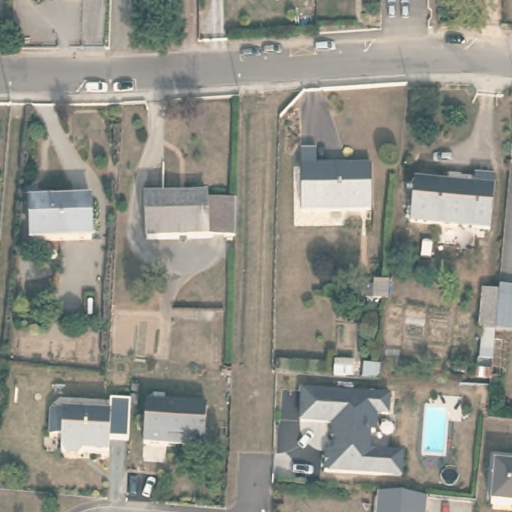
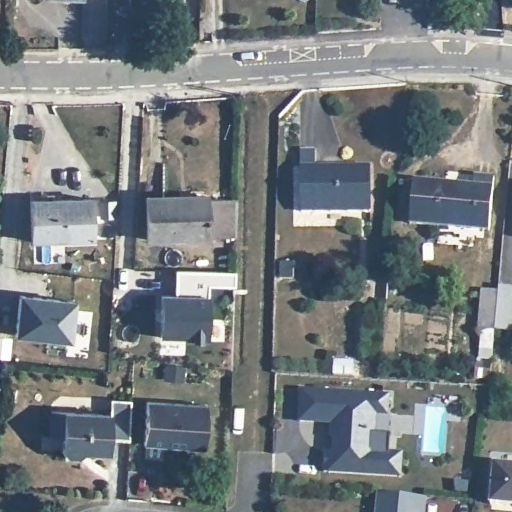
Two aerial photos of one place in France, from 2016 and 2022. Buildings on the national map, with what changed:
unchanged [(301,213),(300,150),(315,150),(315,168),(369,167),(368,211),(301,213)]
unchanged [(409,224),(413,181),(472,186),(473,176),(494,178),(489,231),(409,224)]
unchanged [(30,242),(29,201),(90,200),(92,241),(30,242)]
unchanged [(140,203),(172,202),(200,201),(200,205),(231,205),(230,243),(141,246),(140,203)]
new [(235,287),(207,286),(209,296),(208,340),(158,337),(160,293),(175,294),(175,270),(236,271),(235,287)]
unchanged [(372,301),(372,283),(388,284),(387,301),(372,301)]
unchanged [(482,291),(497,292),(497,298),(512,300),(512,347),(492,346),(493,334),(479,332),(482,291)]
new [(70,342),(14,336),(18,296),(75,301),(70,342)]
unchanged [(333,376),(333,367),(353,368),(352,376),(333,376)]
unchanged [(360,380),(361,370),(380,371),(380,381),(360,380)]
unchanged [(391,395),(390,413),(377,413),(377,431),(371,431),(370,450),(403,451),(402,474),(326,470),(327,450),(342,450),(342,437),(332,437),(333,422),(302,420),(303,390),(391,395)]
unchanged [(205,398),(202,458),(142,455),(145,395),(205,398)]
unchanged [(110,441),(109,454),(82,453),(77,457),(66,456),(61,450),(63,409),(110,412),(110,400),(132,401),(129,442),(110,441)]
unchanged [(512,502),(507,501),(507,502),(488,501),(492,460),(512,462),(512,502)]
unchanged [(396,496),(430,500),(428,512),(379,512),(381,495),(396,496)]

